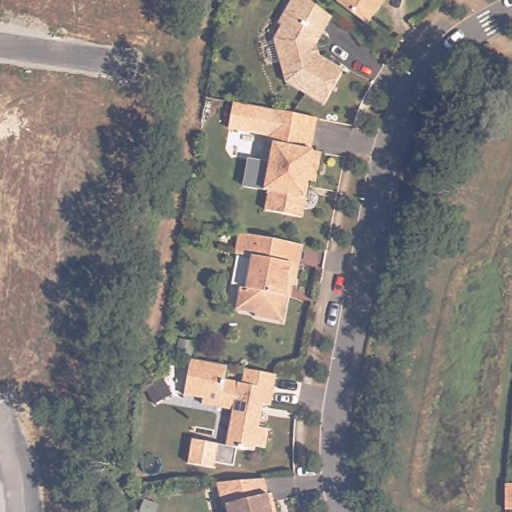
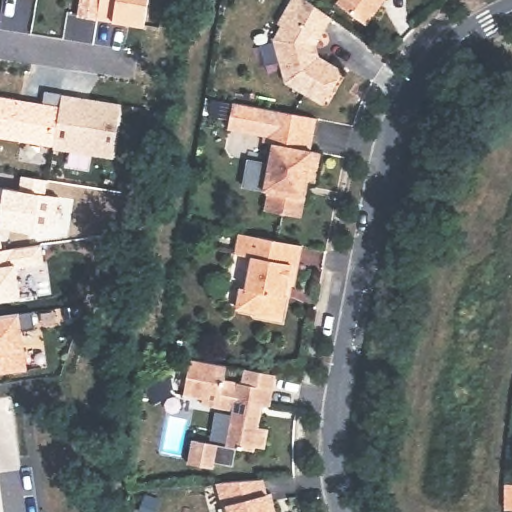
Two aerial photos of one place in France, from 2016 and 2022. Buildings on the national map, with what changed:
new [(82,16),(85,0),(105,0),(101,19),(82,16)]
new [(153,0),(149,27),(101,19),(105,0),(153,0)]
unchanged [(326,108),(289,87),(276,41),(282,30),(278,26),(293,0),(308,0),(332,18),(316,48),(318,58),(345,72),(326,108)]
unchanged [(367,25),(339,4),(342,0),(385,0),(381,5),(367,25)]
new [(46,90),(64,93),(55,144),(0,135),(0,95),(45,101),(46,90)]
new [(64,93),(82,96),(89,96),(122,102),(114,156),(55,146),(55,144),(64,93)]
unchanged [(301,180),(298,195),(300,196),(297,216),(261,208),(265,188),(259,187),(268,140),(257,138),(260,119),(264,105),(311,114),(305,148),(315,150),(311,167),(309,181),(301,180)]
new [(2,186),(15,188),(19,175),(47,179),(45,194),(59,196),(54,230),(35,231),(9,228),(10,239),(2,241),(4,248),(0,248),(0,188),(2,188),(2,186)]
unchanged [(297,245),(296,252),(293,264),(290,287),(282,285),(280,298),(282,298),(277,325),(250,319),(250,316),(234,313),(230,307),(233,292),(239,289),(241,289),(247,257),(231,253),(234,233),(274,241),(297,245)]
new [(45,262),(16,266),(21,296),(0,299),(0,248),(42,243),(45,262)]
new [(48,330),(35,332),(40,371),(0,376),(0,319),(46,313),(48,330)]
unchanged [(226,381),(246,384),(248,371),(277,377),(272,405),(265,404),(260,428),(269,430),(265,447),(257,446),(256,452),(229,446),(235,411),(221,409),(206,406),(207,399),(186,395),(193,360),(229,367),(226,381)]
unchanged [(234,466),(215,463),(214,468),(186,464),(191,438),(217,443),(229,446),(237,448),(234,466)]
unchanged [(230,506),(225,507),(220,483),(266,480),(270,496),(273,496),(277,512),(231,512),(230,506)]
unchanged [(509,486),(512,486),(512,509),(507,509),(509,486)]

